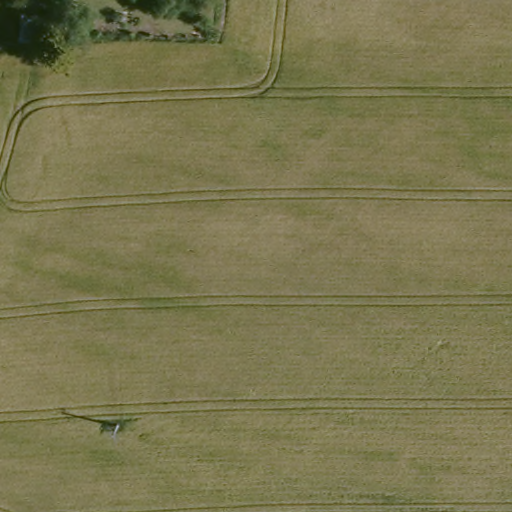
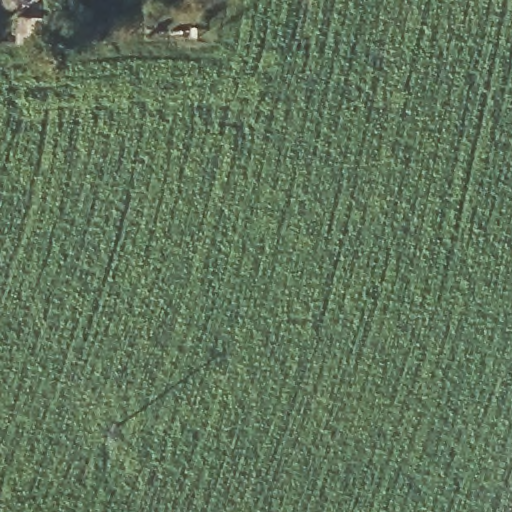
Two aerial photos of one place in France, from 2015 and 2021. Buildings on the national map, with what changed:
unchanged [(8,26),(45,28),(44,55),(7,53),(8,26)]

